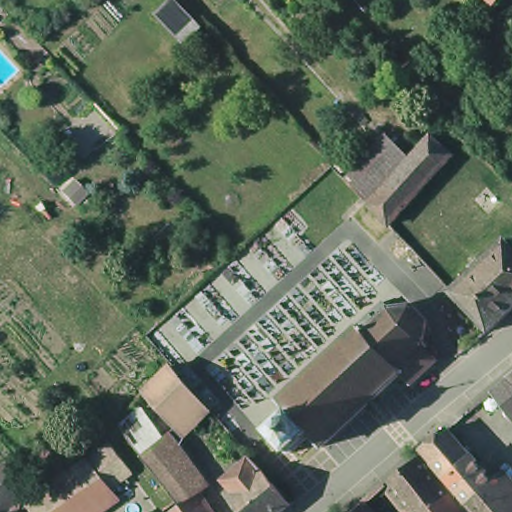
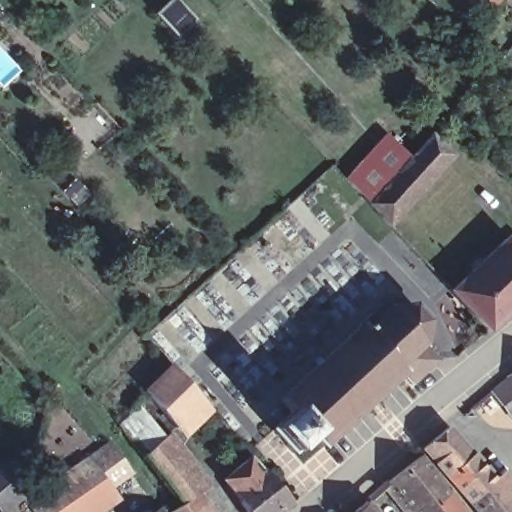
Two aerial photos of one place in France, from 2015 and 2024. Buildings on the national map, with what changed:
unchanged [(178,42),(159,18),(175,0),(197,23),(178,42)]
unchanged [(494,8),(486,0),(501,0),(494,8)]
unchanged [(377,242),(365,228),(379,214),(368,204),(410,158),(410,157),(430,135),(453,154),(389,224),(392,228),(377,242)]
unchanged [(348,183),(390,140),(410,158),(368,204),(348,183)]
unchanged [(505,244),(512,251),(512,312),(488,335),(487,333),(450,295),(505,244)]
unchanged [(396,379),(317,451),(307,440),(305,440),(287,457),(266,434),(284,417),(284,414),(275,404),(354,330),(353,328),(377,306),(384,313),(407,310),(422,325),(417,348),(432,364),(405,388),(396,379)]
unchanged [(195,418),(180,431),(148,395),(174,370),(178,374),(182,379),(207,406),(215,415),(215,416),(203,427),(195,418)]
unchanged [(512,422),(490,396),(507,381),(512,378),(512,422)]
unchanged [(197,490),(190,496),(178,504),(177,503),(165,487),(142,455),(117,424),(135,408),(161,437),(200,488),(197,490)]
unchanged [(471,460),(447,481),(425,456),(422,453),(447,433),(471,460)]
unchanged [(85,459),(108,443),(129,467),(127,468),(130,473),(118,481),(109,488),(85,459)]
unchanged [(223,480),(250,456),(261,469),(270,479),(282,493),(283,494),(290,502),(278,512),(245,512),(233,492),(223,480)]
unchanged [(403,512),(384,488),(422,458),(464,512),(403,512)]
unchanged [(55,480),(85,459),(109,488),(117,498),(98,512),(31,512),(22,501),(55,480)]
unchanged [(473,512),(447,481),(471,460),(512,509),(512,512),(473,512)]
unchanged [(0,504),(0,470),(8,463),(26,484),(2,504),(0,504)]
unchanged [(197,490),(207,505),(211,512),(168,512),(178,504),(190,496),(197,490)]
unchanged [(370,512),(358,512),(365,506),(370,512)]

